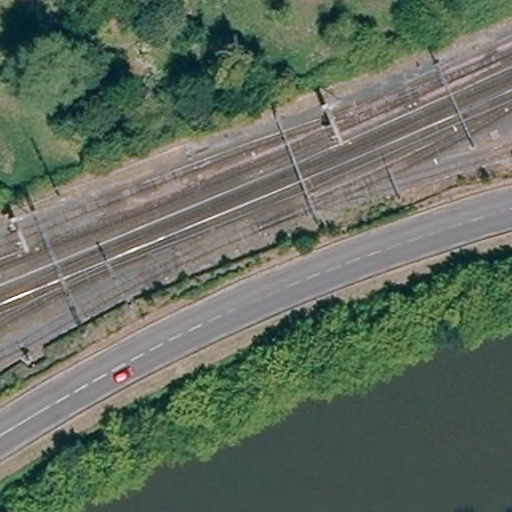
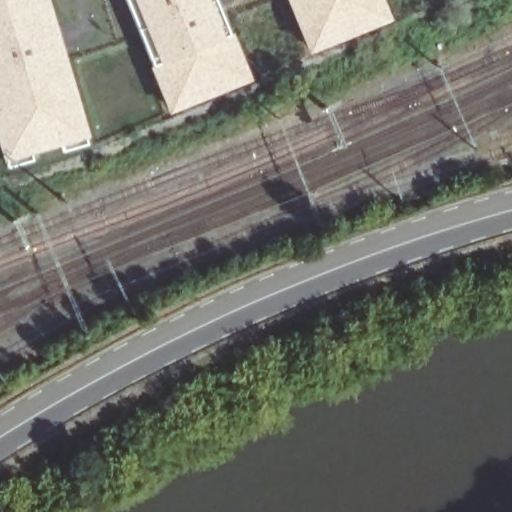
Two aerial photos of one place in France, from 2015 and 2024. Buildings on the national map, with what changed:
new [(90,142),(60,151),(58,145),(30,154),(32,157),(5,166),(0,151),(0,0),(49,0),(58,28),(90,142)]
new [(251,80),(167,113),(149,66),(141,43),(125,0),(216,0),(217,4),(251,80)]
new [(311,47),(292,0),(379,0),(385,16),(311,47)]

